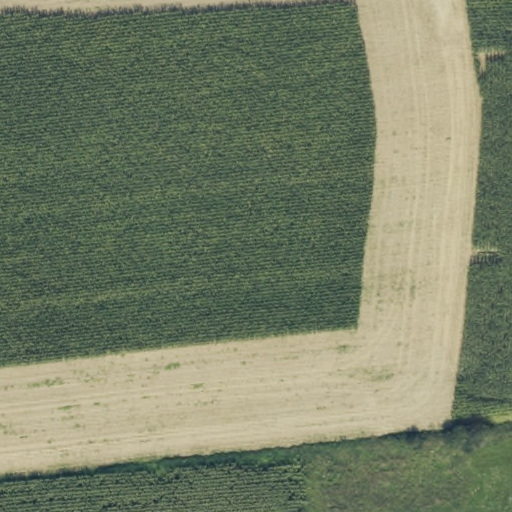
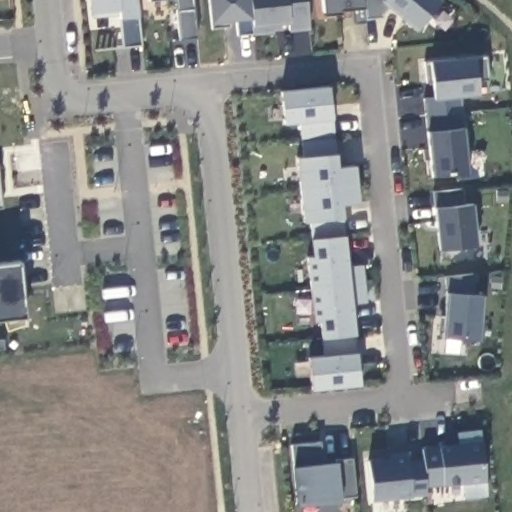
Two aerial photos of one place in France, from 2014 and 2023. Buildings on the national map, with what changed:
new [(138,17),(141,45),(123,47),(123,19),(119,19),(118,15),(92,19),(93,13),(89,14),(89,0),(137,0),(138,17)]
new [(176,0),(193,0),(198,39),(181,41),(176,0)]
new [(289,32),(290,23),(280,24),(279,28),(273,28),(273,33),(237,35),(237,26),(213,28),(204,21),(202,0),(306,0),(310,30),(289,32)]
new [(389,7),(382,16),(383,19),(365,20),(365,23),(353,24),(354,9),(339,10),(340,13),(323,15),(321,0),(441,0),(416,30),(389,7)]
new [(476,82),(479,94),(466,95),(467,127),(472,174),(434,177),(431,133),(426,98),(432,97),(428,61),(475,56),(487,56),(490,80),(476,82)]
new [(332,119),(335,154),(338,168),(354,165),(358,203),(340,204),(341,218),(344,235),(347,267),(363,265),(367,302),(351,303),(354,334),(355,352),(359,385),(311,391),(307,357),(325,355),(324,337),(321,337),(319,322),(312,323),(307,257),(312,257),(310,239),(313,239),(313,222),(302,223),(296,158),(305,156),(302,123),(285,124),(281,91),(329,87),(332,119)]
new [(2,209),(0,209),(0,177),(2,209)]
new [(442,250),(438,208),(437,192),(464,190),(465,204),(473,204),(480,247),(442,250)]
new [(19,262),(26,318),(0,320),(0,264),(19,262)]
new [(481,295),(484,295),(480,340),(443,336),(447,293),(446,276),(475,272),(481,295)]
unchanged [(482,441),(486,481),(486,498),(462,499),(462,484),(426,488),(427,494),(413,496),(412,497),(371,501),(367,460),(388,458),(387,456),(406,454),(408,461),(421,460),(422,447),(457,443),(455,432),(480,429),(482,441)]
new [(356,496),(340,497),(341,502),(297,506),(292,467),(297,466),(291,447),(320,442),(325,463),(338,462),(352,458),(356,496)]

